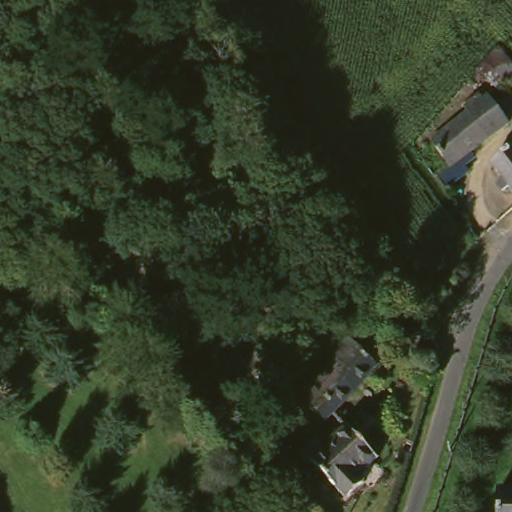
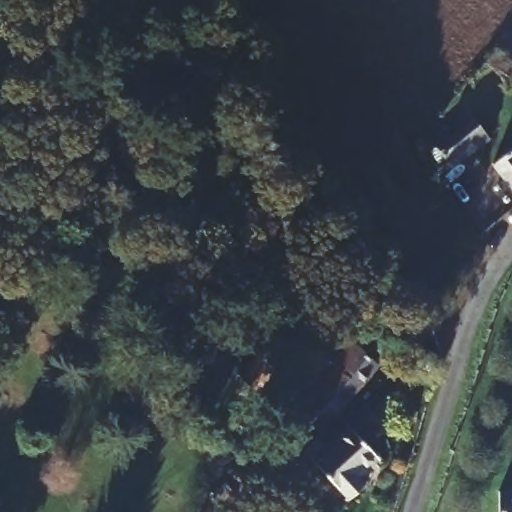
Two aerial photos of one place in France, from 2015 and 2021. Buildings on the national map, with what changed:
unchanged [(511,42),(512,42),(512,65),(500,55),(511,42)]
unchanged [(478,109),(496,96),(512,117),(512,124),(497,135),(464,158),(472,170),(456,182),(448,171),(462,159),(443,133),(478,109)]
unchanged [(512,148),(512,179),(497,160),(512,148)]
unchanged [(302,449),(335,420),(316,405),(327,392),(310,378),(351,329),(386,360),(343,411),(387,453),(371,471),(375,475),(351,499),(302,449)]
unchanged [(509,485),(512,485),(512,512),(507,512),(509,485)]

